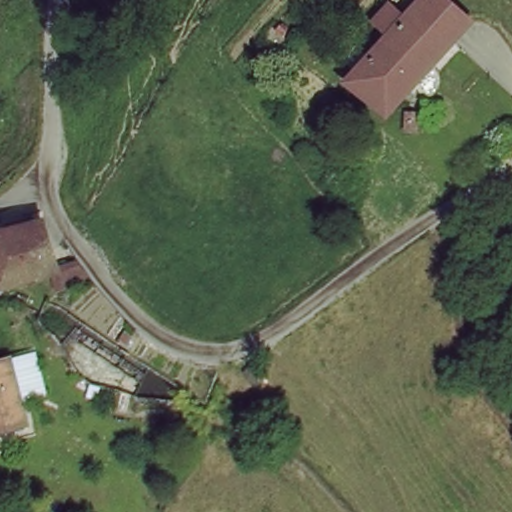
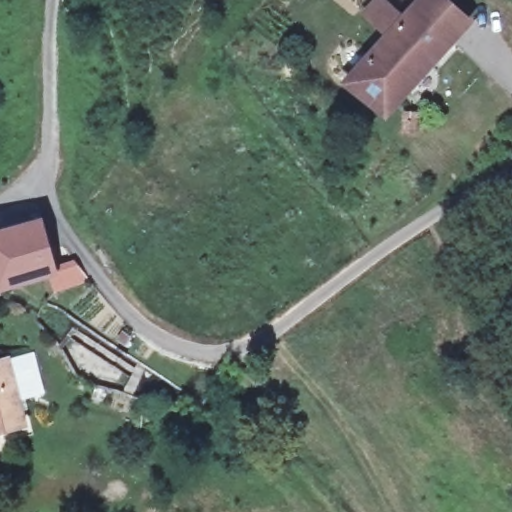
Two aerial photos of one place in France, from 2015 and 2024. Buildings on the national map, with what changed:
unchanged [(0,0),(20,0),(0,20),(0,0)]
unchanged [(421,0),(426,0),(458,33),(390,106),(354,69),(421,0)]
unchanged [(0,292),(0,228),(42,217),(62,273),(22,285),(0,292)]
unchanged [(0,357),(10,355),(24,405),(0,412),(0,357)]

